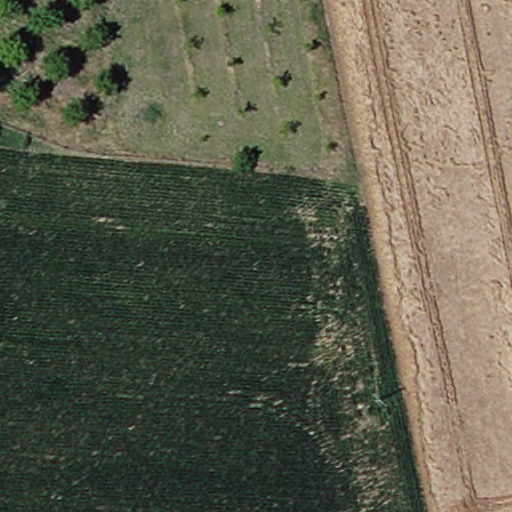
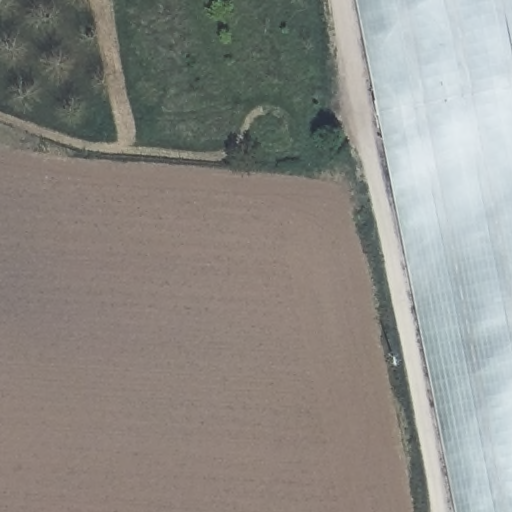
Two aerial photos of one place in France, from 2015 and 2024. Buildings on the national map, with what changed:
new [(454,512),(356,0),(512,0),(512,512),(454,512)]

